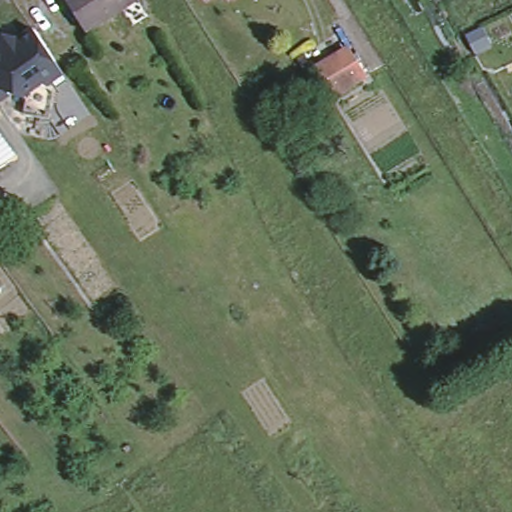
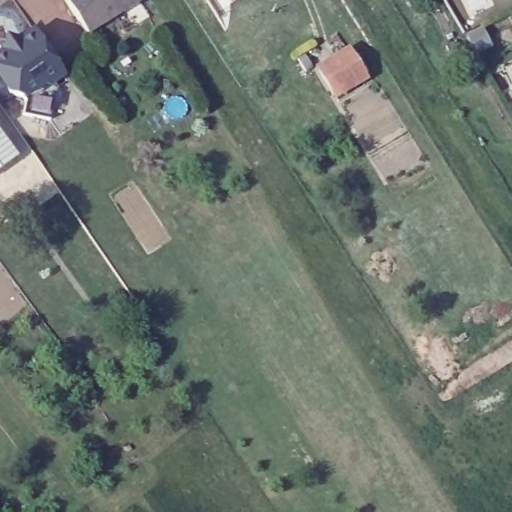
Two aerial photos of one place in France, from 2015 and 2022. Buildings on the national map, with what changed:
unchanged [(67,0),(139,0),(140,1),(89,34),(67,0)]
unchanged [(4,46),(7,39),(19,41),(35,30),(64,74),(48,85),(42,83),(33,89),(4,46)]
unchanged [(22,97),(12,94),(0,100),(0,49),(4,46),(33,89),(22,97)]
unchanged [(348,50),(365,76),(335,95),(319,69),(348,50)]
unchanged [(12,151),(0,160),(0,135),(12,151)]

